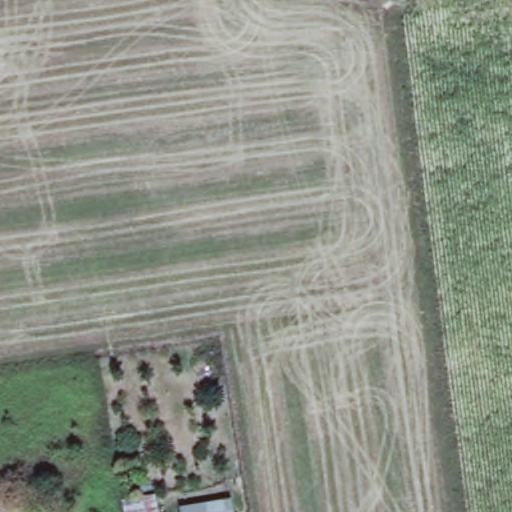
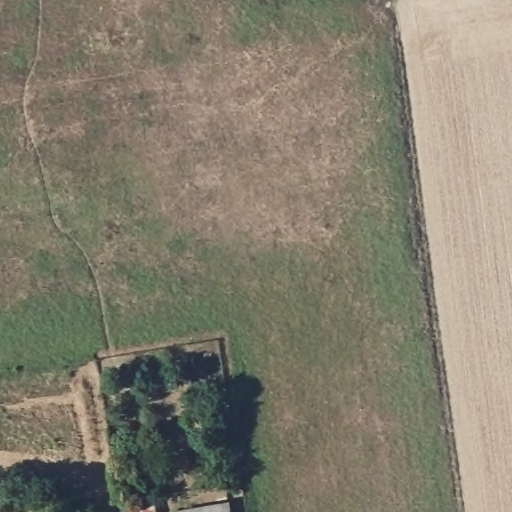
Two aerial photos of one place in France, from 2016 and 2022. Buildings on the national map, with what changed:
unchanged [(233,512),(178,512),(177,509),(231,499),(233,512)]

